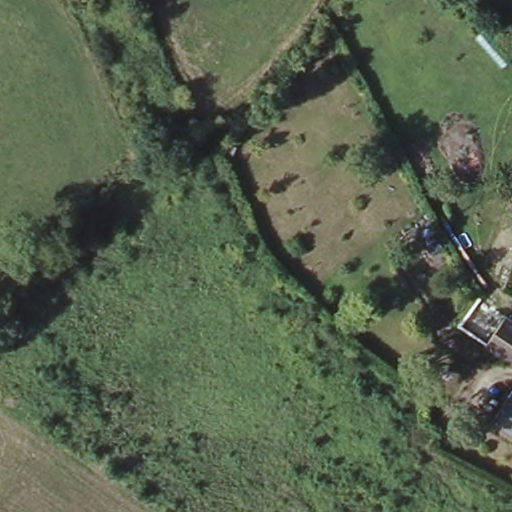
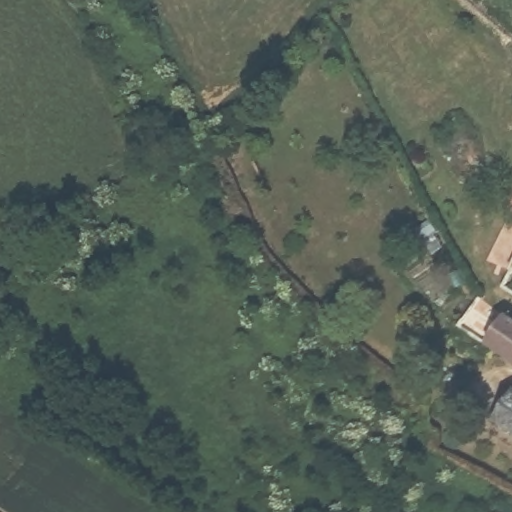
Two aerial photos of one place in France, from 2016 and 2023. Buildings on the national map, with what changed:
unchanged [(512,317),(512,358),(485,340),(504,312),(512,317)]
unchanged [(512,392),(512,433),(486,418),(505,388),(512,392)]

